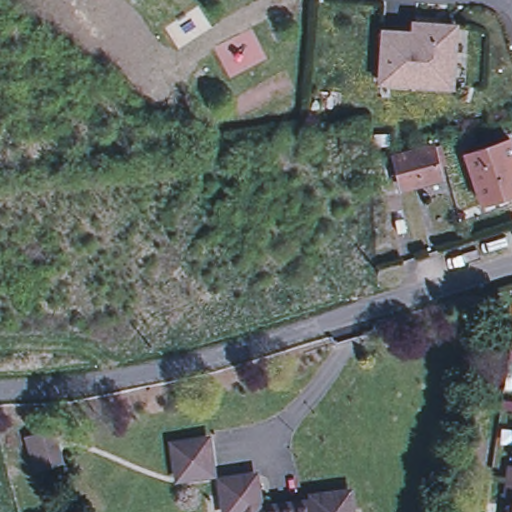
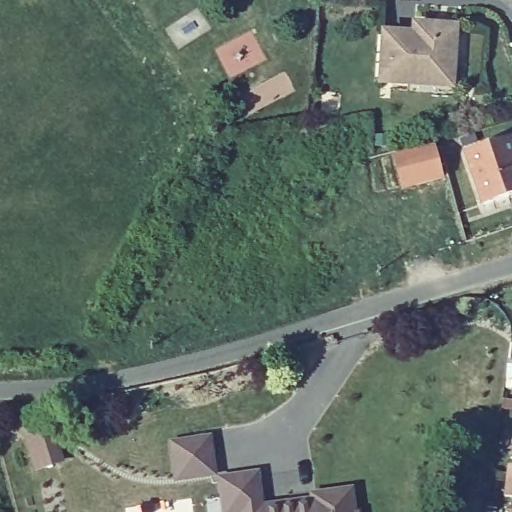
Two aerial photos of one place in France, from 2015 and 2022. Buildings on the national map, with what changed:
unchanged [(460,85),(448,85),(378,81),(381,31),(410,34),(411,23),(452,25),(464,26),(460,85)]
unchanged [(512,194),(485,203),(467,153),(510,138),(512,143),(512,194)]
unchanged [(440,144),(445,164),(438,165),(441,175),(385,191),(377,161),(432,146),(440,144)]
unchanged [(50,431),(60,461),(40,468),(30,437),(50,431)]
unchanged [(168,442),(210,436),(216,477),(173,481),(168,442)]
unchanged [(512,462),(512,478),(508,478),(510,462),(512,462)]
unchanged [(232,512),(222,512),(218,482),(250,477),(255,507),(267,506),(268,512),(239,512),(238,511),(232,512)]
unchanged [(512,494),(507,494),(508,478),(512,478),(512,494)]
unchanged [(285,512),(285,507),(312,504),(311,499),(344,494),(346,512),(279,512),(285,512)]
unchanged [(512,507),(512,512),(510,512),(508,510),(512,507)]

